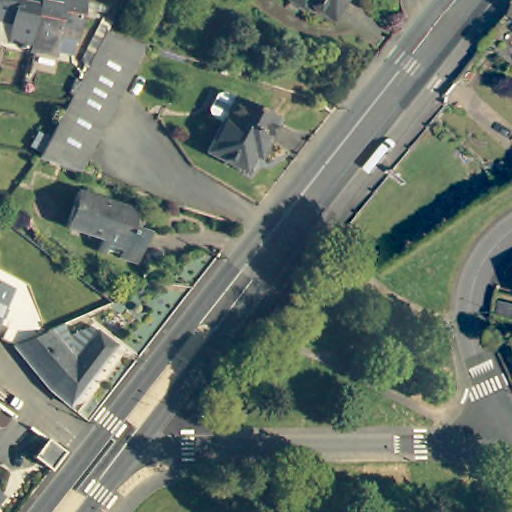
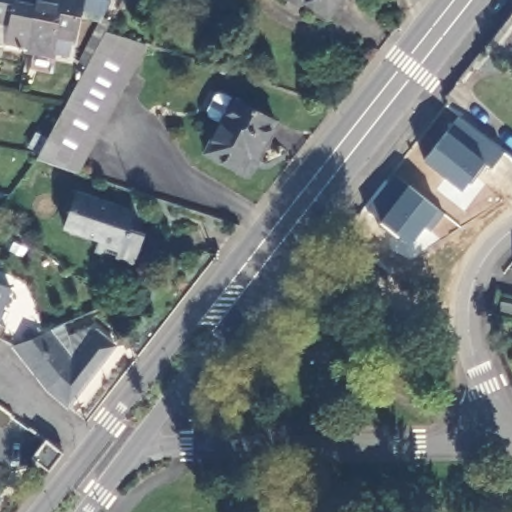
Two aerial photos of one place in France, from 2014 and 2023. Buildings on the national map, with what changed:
unchanged [(0,0),(27,0),(37,2),(28,48),(0,42),(0,0)]
unchanged [(59,0),(80,0),(73,38),(53,34),(50,51),(28,48),(37,2),(58,6),(59,0)]
unchanged [(289,0),(294,0),(292,2),(289,0)]
unchanged [(302,0),(341,0),(329,18),(302,0)]
unchanged [(39,168),(43,156),(39,154),(41,150),(70,96),(106,28),(145,41),(149,42),(81,168),(61,161),(57,175),(39,168)]
unchanged [(257,159),(251,156),(242,173),(207,154),(222,125),(210,118),(208,111),(217,96),(223,94),(235,100),(277,122),(257,159)]
new [(451,121),(468,135),(474,128),(501,151),(490,165),(485,161),(470,180),(467,177),(459,188),(422,158),(451,121)]
new [(380,178),(396,192),(403,183),(438,211),(423,229),(417,224),(403,241),(394,234),(392,237),(373,221),(376,217),(359,204),(380,178)]
unchanged [(66,224),(78,188),(135,207),(130,223),(147,229),(136,261),(96,248),(98,240),(92,239),(94,233),(66,224)]
unchanged [(0,327),(0,282),(18,290),(0,327)]
unchanged [(114,345),(67,406),(58,399),(48,388),(28,365),(15,348),(51,333),(60,342),(91,327),(114,345)]
unchanged [(66,452),(50,472),(31,458),(48,438),(66,452)]
unchanged [(0,503),(0,497),(3,499),(0,503)]

